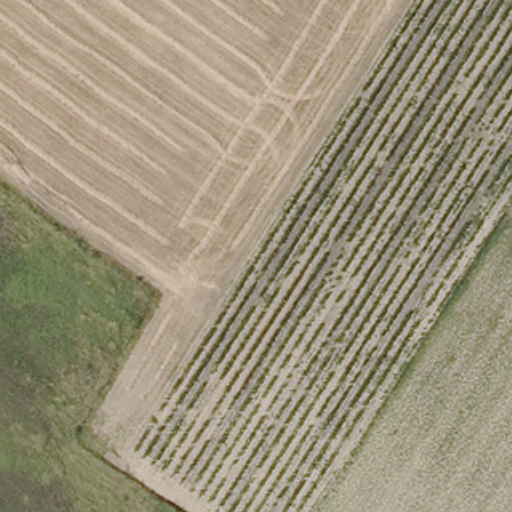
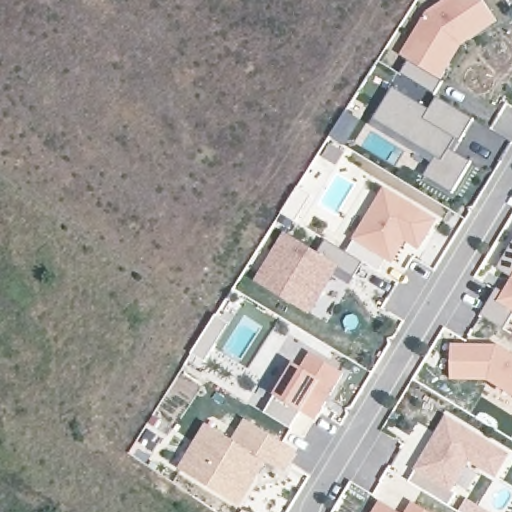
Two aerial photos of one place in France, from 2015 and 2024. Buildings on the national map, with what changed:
new [(440,78),(445,81),(436,96),(401,75),(410,61),(402,57),(429,14),(450,0),(483,0),(497,22),(470,41),(458,48),(450,62),(440,78)]
new [(472,162),(453,194),(425,177),(437,157),(375,120),(394,88),(431,110),(439,97),(475,120),(462,142),(456,152),(472,162)]
new [(284,232),(313,249),(318,252),(327,240),(345,252),(385,187),(440,220),(420,251),(406,243),(393,265),(385,261),(379,271),(364,262),(350,285),(335,277),(310,315),(255,282),(284,232)]
new [(512,246),(512,277),(498,269),(512,246)]
new [(482,316),(497,288),(504,292),(512,278),(512,312),(504,329),(482,316)]
new [(451,381),(451,345),(500,345),(512,353),(512,396),(487,381),(451,381)]
new [(316,420),(302,412),(291,429),(266,413),(276,397),(272,393),(291,361),(303,368),(312,353),(344,373),(326,403),(322,409),(316,420)]
new [(497,479),(471,462),(452,490),(457,492),(448,506),(409,482),(415,472),(413,470),(447,416),(512,455),(497,479)]
new [(222,495),(181,470),(208,425),(235,441),(247,420),(297,450),(283,472),(266,461),(254,480),(239,506),(222,495)]
new [(465,498),(489,512),(459,512),(457,511),(465,498)]
new [(377,508),(380,502),(397,512),(374,512),(377,508)]
new [(414,503),(428,512),(408,512),(414,503)]

